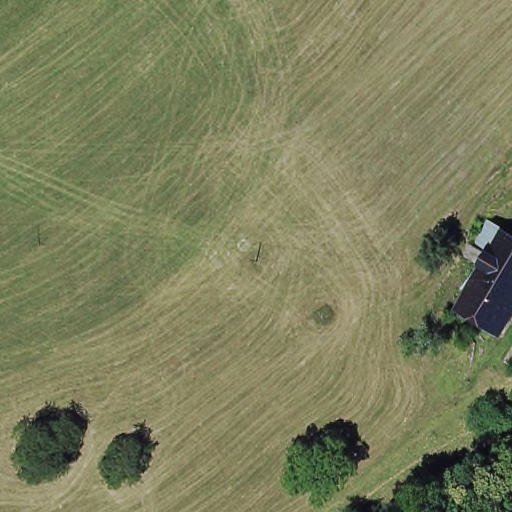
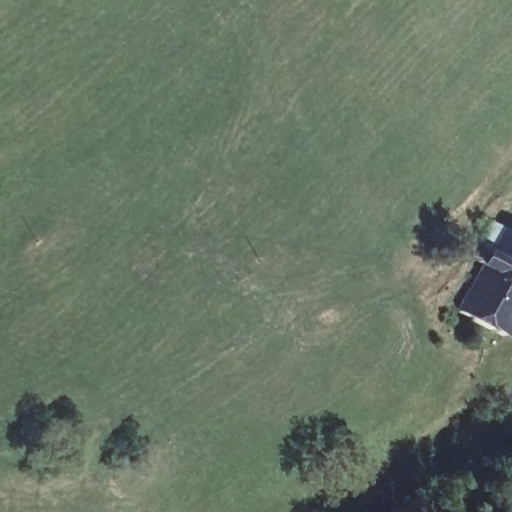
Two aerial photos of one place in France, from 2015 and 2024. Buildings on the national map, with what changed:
unchanged [(512,231),(512,323),(500,343),(459,311),(465,299),(453,292),(492,221),(512,231)]

